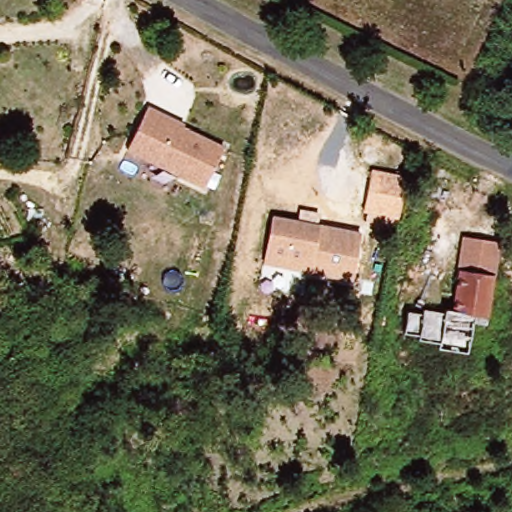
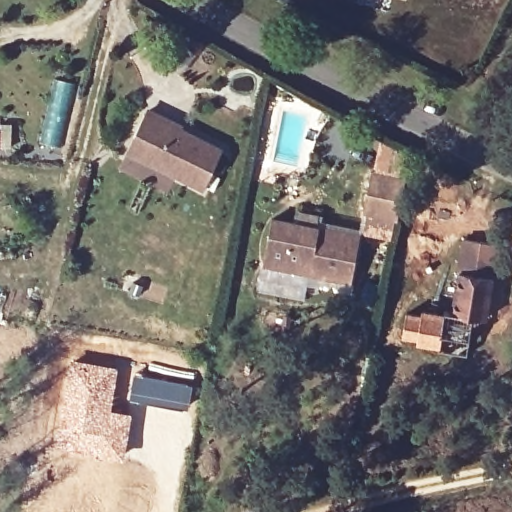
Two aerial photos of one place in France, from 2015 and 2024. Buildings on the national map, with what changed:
unchanged [(136,134),(148,109),(224,146),(213,171),(207,184),(194,178),(158,161),(129,148),(136,134)]
new [(392,222),(389,232),(363,227),(361,216),(371,171),(406,178),(397,223),(392,222)]
unchanged [(356,279),(268,262),(274,218),(364,234),(356,279)]
unchanged [(473,317),(468,357),(439,352),(438,346),(419,342),(419,337),(402,333),(405,315),(422,318),(422,312),(446,315),(447,310),(454,312),(461,270),(454,269),(459,235),(500,241),(495,276),(489,319),(473,317)]
new [(59,407),(68,359),(118,367),(113,408),(133,412),(123,460),(53,449),(59,407)]
new [(133,373),(193,383),(188,407),(128,399),(133,373)]

